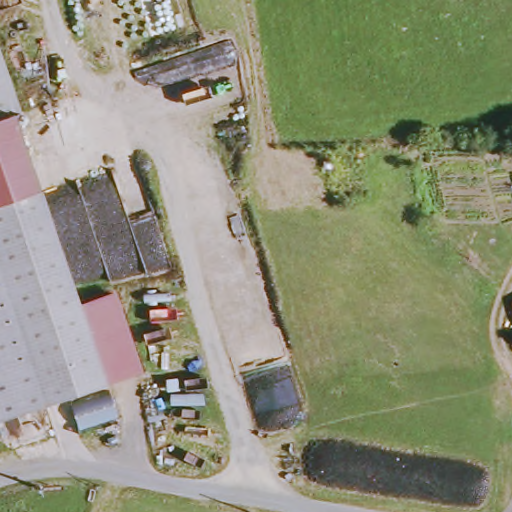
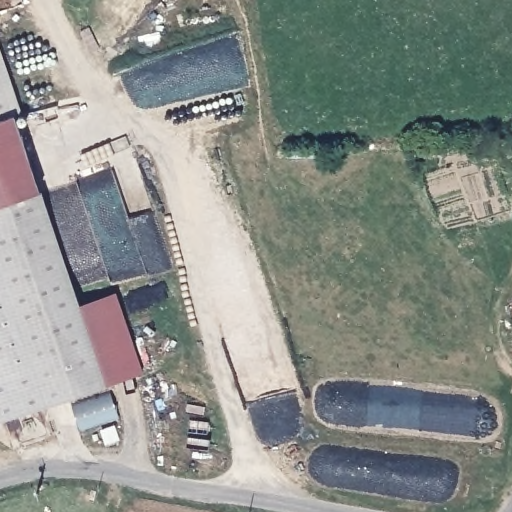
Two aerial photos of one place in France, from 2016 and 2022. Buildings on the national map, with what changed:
unchanged [(24,116),(16,118),(43,192),(82,306),(117,294),(144,372),(110,386),(47,408),(0,424),(0,48),(24,116)]

